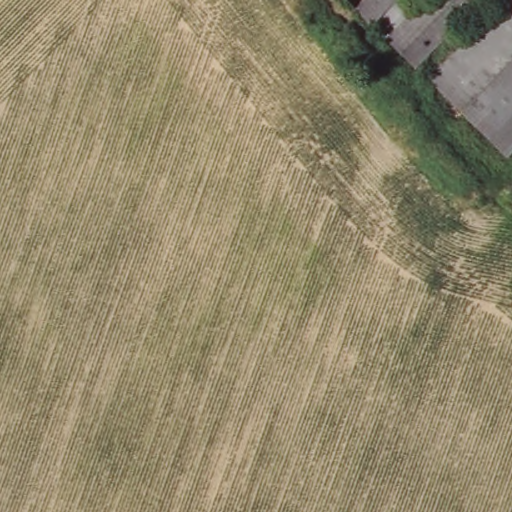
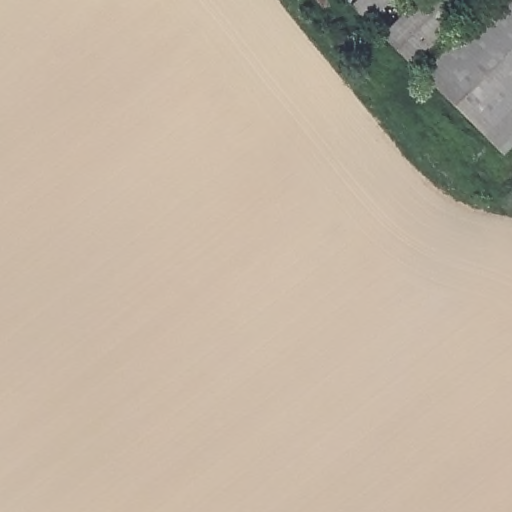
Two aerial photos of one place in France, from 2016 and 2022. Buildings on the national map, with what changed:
unchanged [(350,0),(390,0),(368,20),(350,0)]
unchanged [(383,37),(423,0),(483,0),(412,65),(383,37)]
unchanged [(495,154),(426,80),(512,0),(512,139),(495,154)]

